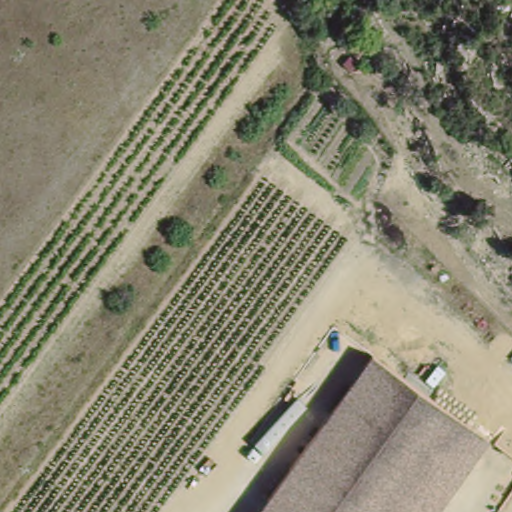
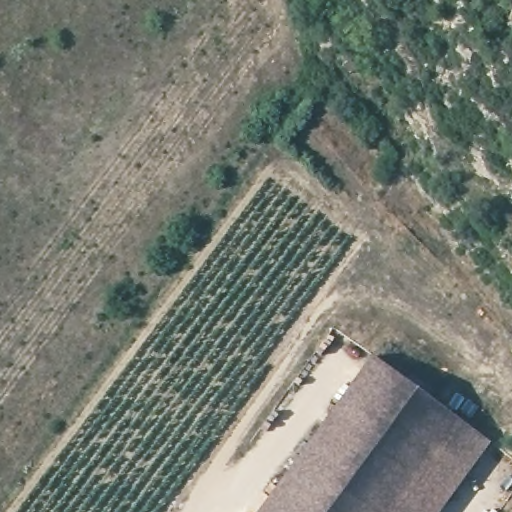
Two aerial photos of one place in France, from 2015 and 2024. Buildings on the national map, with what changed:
unchanged [(492,441),(441,512),(258,512),(372,356),(492,441)]

